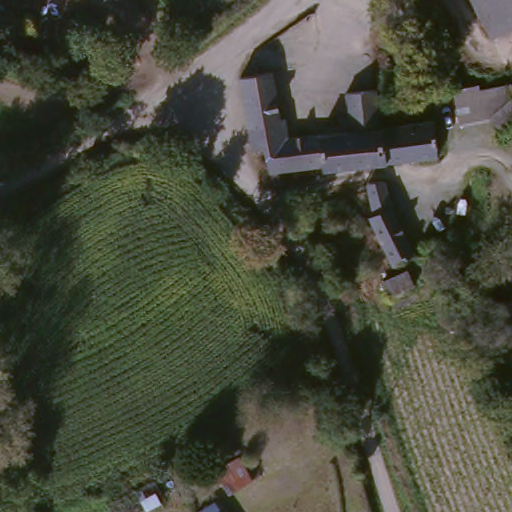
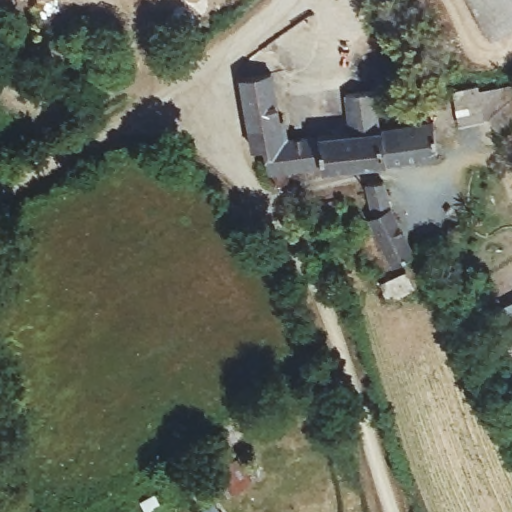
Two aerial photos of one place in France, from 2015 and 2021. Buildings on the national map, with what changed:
unchanged [(484,32),(468,0),(512,0),(512,18),(484,32)]
unchanged [(368,95),(373,134),(377,133),(380,167),(317,174),(317,171),(280,176),(280,178),(282,188),(267,191),(258,152),(252,153),(247,154),(235,90),(234,83),(239,82),(266,77),(277,143),(345,136),(340,98),(368,95)]
unchanged [(512,93),(512,129),(500,139),(488,123),(458,128),(454,102),(458,101),(457,95),(476,91),(478,97),(511,92),(512,93)]
unchanged [(427,127),(431,162),(380,167),(377,133),(427,127)]
unchanged [(380,212),(403,261),(383,272),(360,227),(363,221),(357,188),(365,187),(372,187),(380,212)]
unchanged [(402,292),(377,302),(370,288),(395,277),(402,292)]
unchanged [(503,305),(512,300),(512,322),(503,305)]
unchanged [(500,340),(512,334),(512,365),(500,340)]
unchanged [(239,457),(252,480),(228,493),(215,472),(239,457)]
unchanged [(137,495),(142,492),(145,498),(155,493),(160,503),(145,511),(137,495)]
unchanged [(198,512),(215,502),(221,512),(198,512)]

